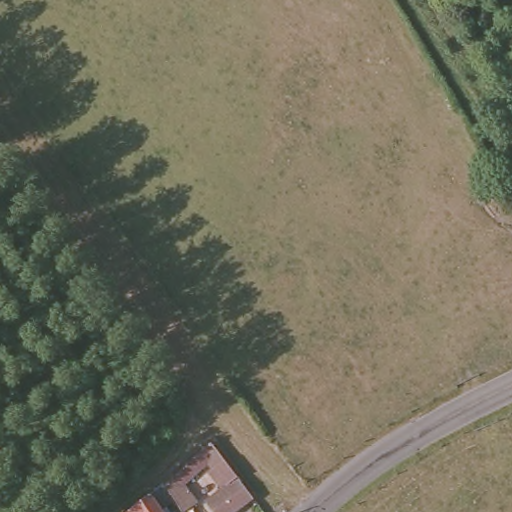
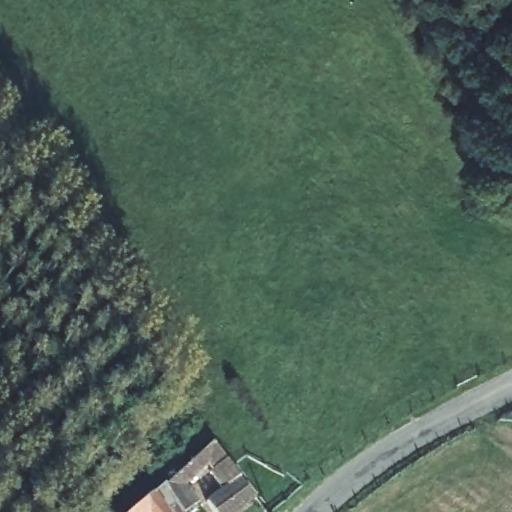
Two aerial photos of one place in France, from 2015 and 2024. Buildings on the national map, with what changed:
unchanged [(213,512),(204,500),(220,489),(207,472),(211,469),(207,464),(185,484),(197,501),(182,512),(181,512),(172,498),(162,484),(209,443),(250,497),(230,512),(213,512)]
unchanged [(162,483),(162,484),(172,498),(159,508),(162,512),(127,512),(149,493),(162,483)]

